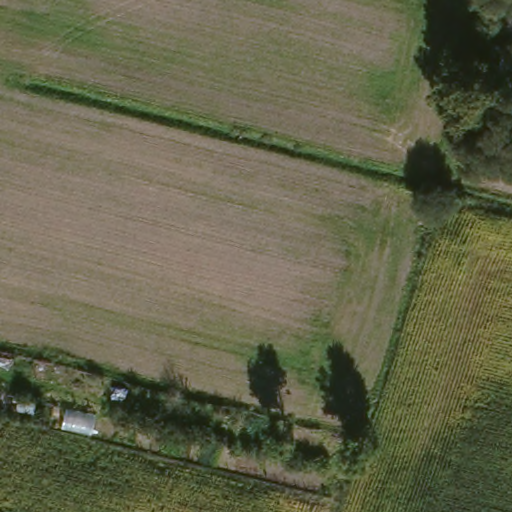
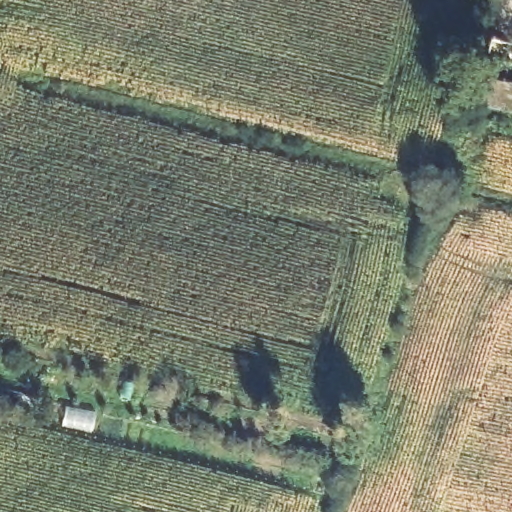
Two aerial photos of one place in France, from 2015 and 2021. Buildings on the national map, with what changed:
unchanged [(496,84),(512,87),(512,114),(491,110),(496,84)]

